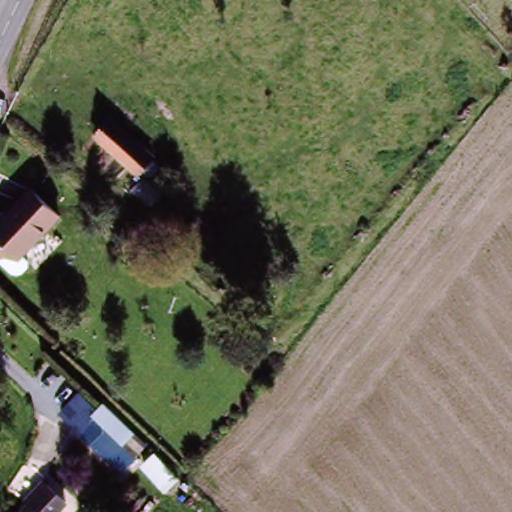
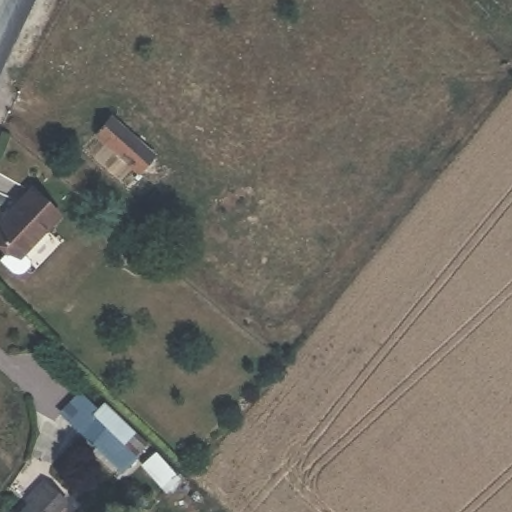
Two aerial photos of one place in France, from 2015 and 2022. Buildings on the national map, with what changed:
unchanged [(155,156),(142,173),(94,136),(107,120),(155,156)]
unchanged [(16,272),(4,259),(15,247),(0,233),(0,223),(32,189),(61,217),(27,253),(35,261),(26,272),(16,272)]
unchanged [(46,487),(63,504),(55,512),(22,512),(46,487)]

